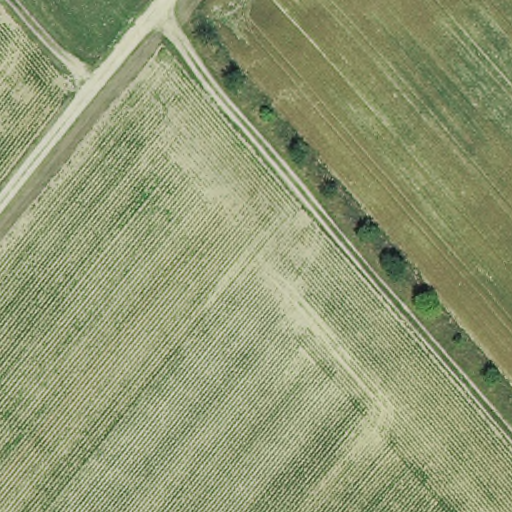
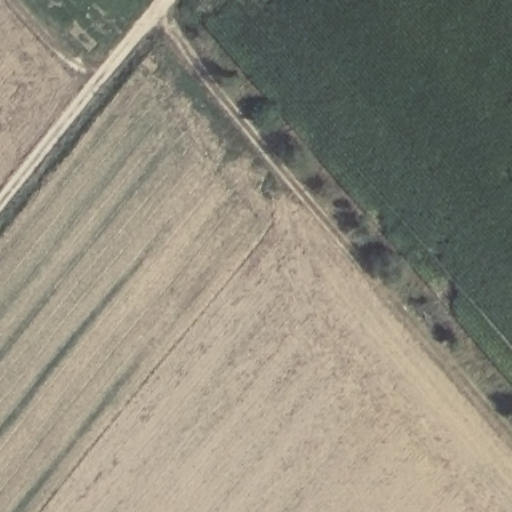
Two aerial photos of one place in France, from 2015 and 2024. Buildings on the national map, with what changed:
[]

